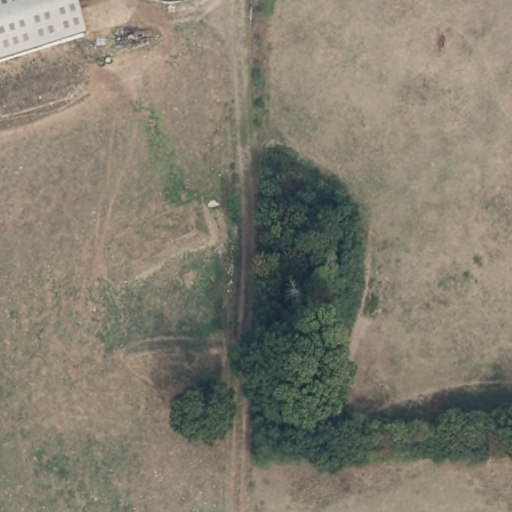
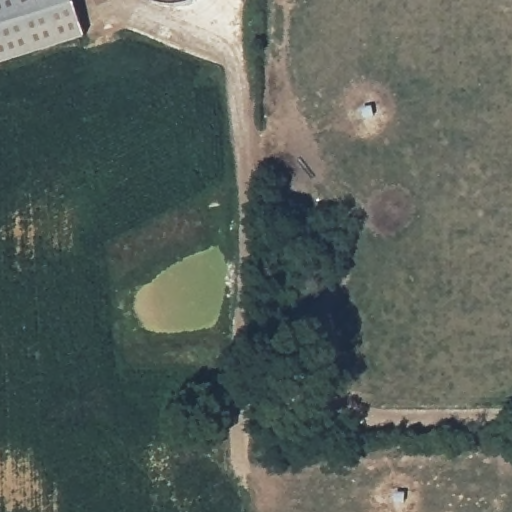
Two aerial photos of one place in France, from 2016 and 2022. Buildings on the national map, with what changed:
unchanged [(0,63),(0,0),(74,0),(85,33),(0,63)]

